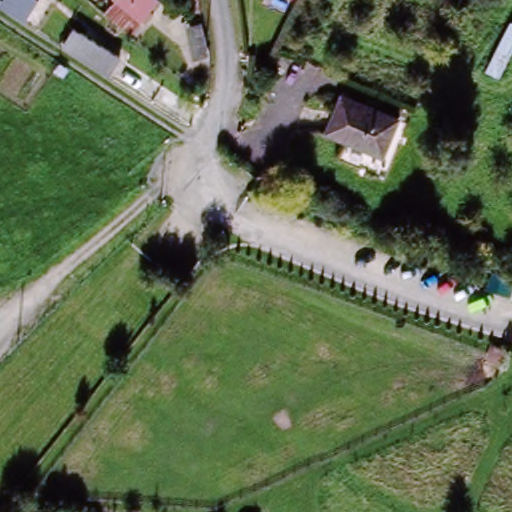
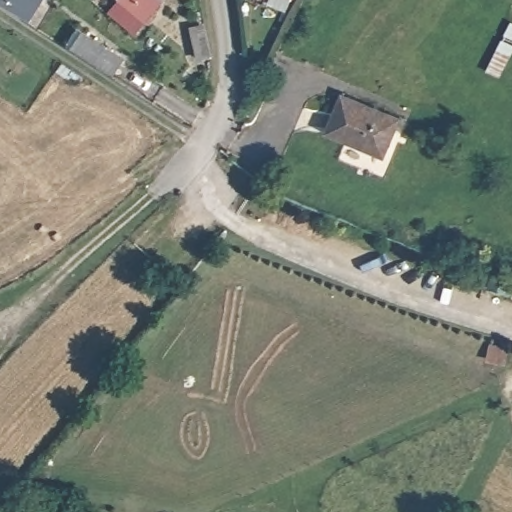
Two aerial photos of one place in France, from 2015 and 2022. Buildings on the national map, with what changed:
unchanged [(30,16),(0,0),(38,0),(30,16)]
unchanged [(141,25),(115,7),(120,0),(159,0),(141,25)]
unchanged [(74,27),(117,60),(107,74),(65,41),(74,27)]
unchanged [(512,52),(502,72),(492,68),(512,27),(512,52)]
unchanged [(387,152),(330,133),(342,97),(398,116),(387,152)]

